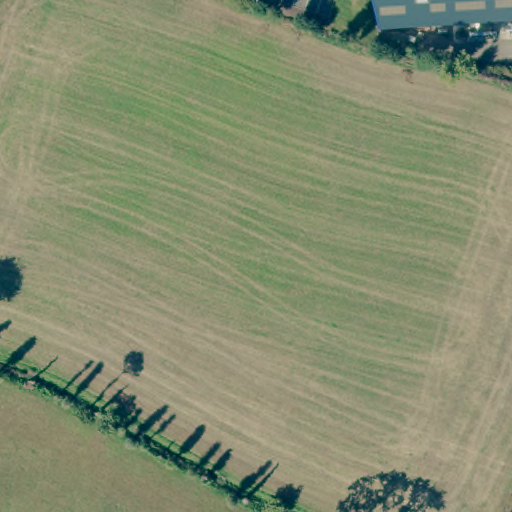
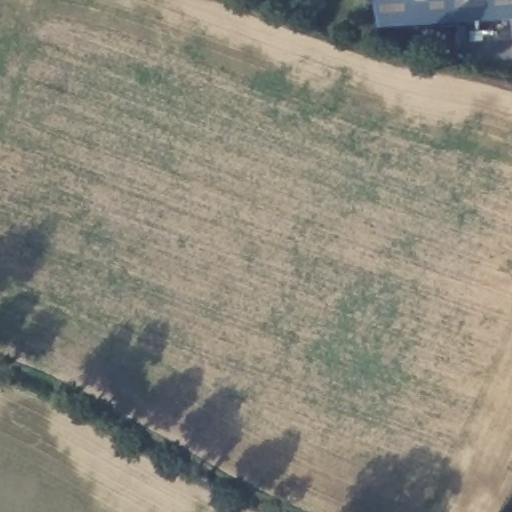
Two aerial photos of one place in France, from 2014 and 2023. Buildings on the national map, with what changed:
unchanged [(380,29),(374,0),(512,0),(512,21),(380,29)]

